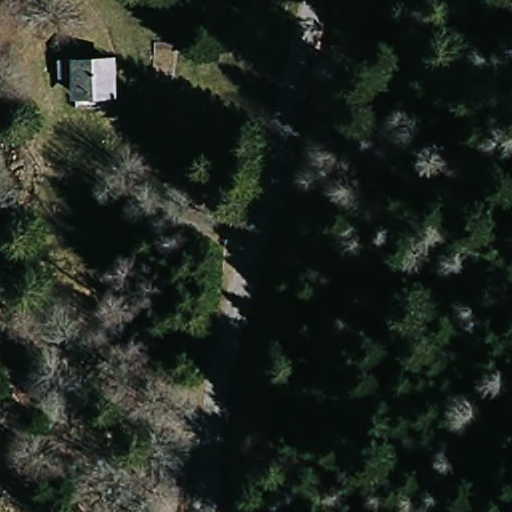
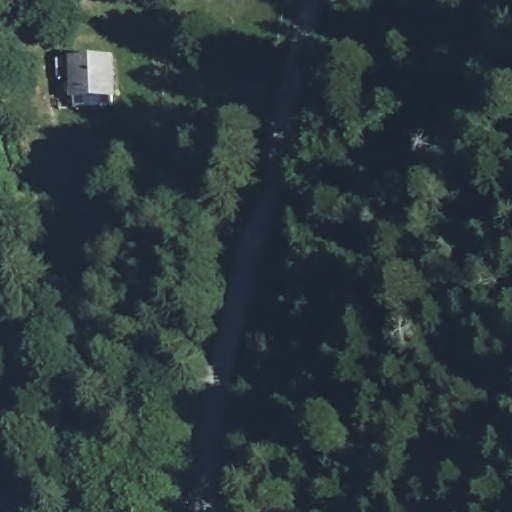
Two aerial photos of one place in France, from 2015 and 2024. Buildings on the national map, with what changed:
unchanged [(119,97),(74,100),(71,57),(118,55),(119,97)]

